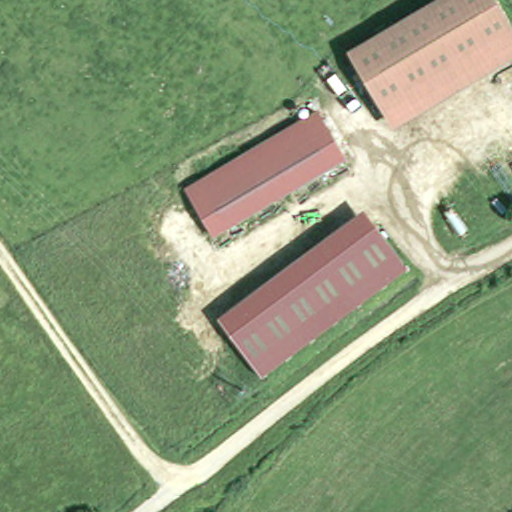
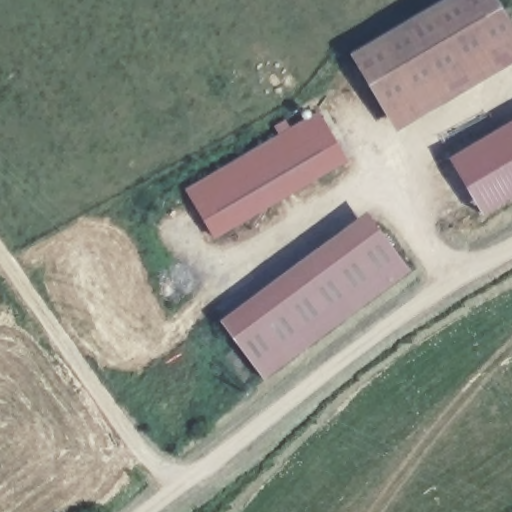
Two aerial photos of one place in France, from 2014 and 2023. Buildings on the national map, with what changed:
unchanged [(393,130),(383,112),(347,53),(437,0),(493,0),(512,32),(512,59),(393,130)]
unchanged [(343,161),(212,239),(184,191),(315,113),(343,161)]
new [(480,211),(445,155),(512,116),(512,193),(480,211)]
unchanged [(217,321),(362,214),(375,230),(405,272),(260,379),(230,339),(217,321)]

